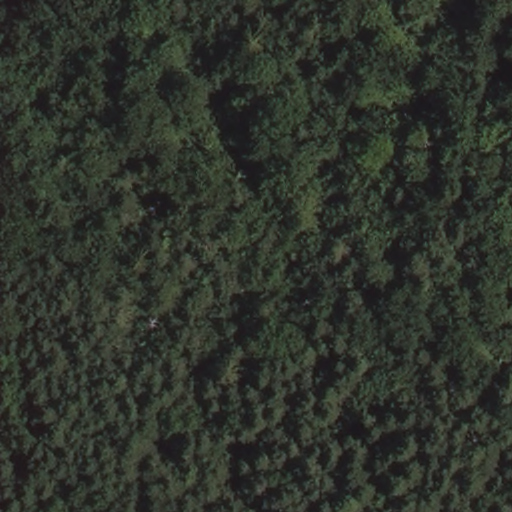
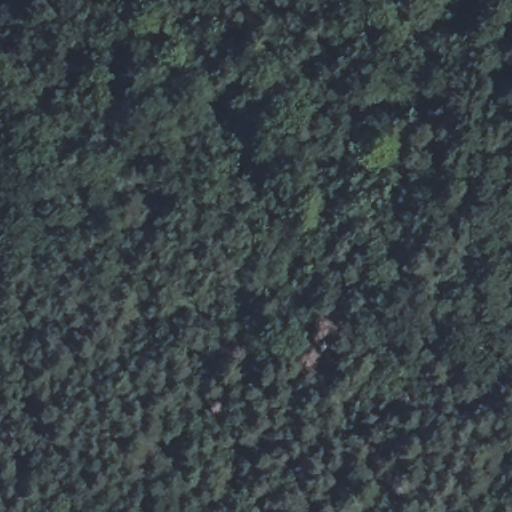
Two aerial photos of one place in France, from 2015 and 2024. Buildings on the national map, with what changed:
[]

